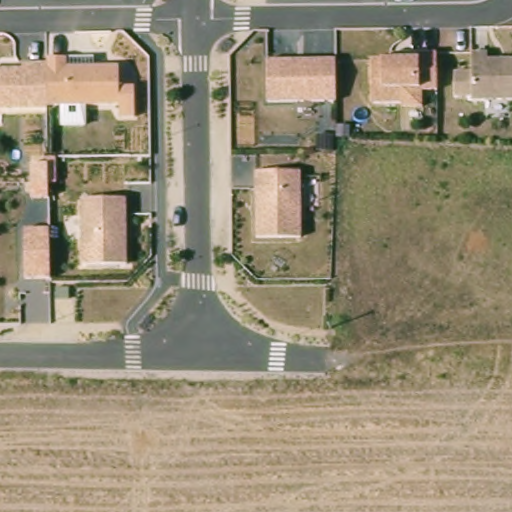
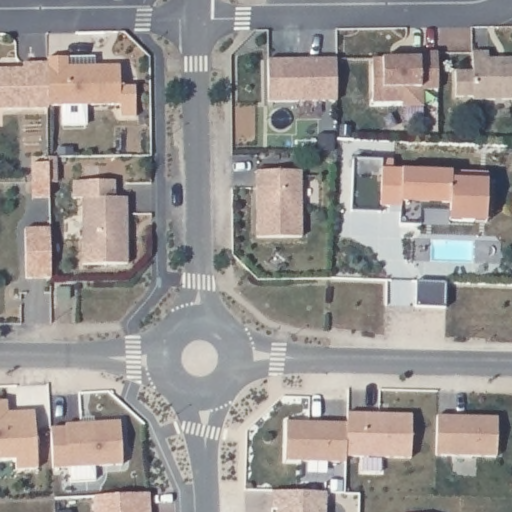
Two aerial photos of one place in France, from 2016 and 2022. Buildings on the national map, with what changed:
unchanged [(512,100),(472,101),(472,100),(471,55),(489,53),(489,62),(512,61),(512,100)]
unchanged [(419,87),(403,88),(403,104),(372,105),(370,60),(381,57),(421,56),(436,56),(438,92),(419,92),(419,87)]
unchanged [(0,107),(0,68),(22,67),(22,59),(46,58),(47,107),(0,107)]
unchanged [(119,106),(47,107),(46,58),(67,58),(67,66),(118,68),(119,106)]
unchanged [(334,59),(336,102),(267,103),(266,60),(334,59)]
new [(48,163),(48,157),(56,157),(56,182),(48,182),(48,197),(32,198),(32,163),(48,163)]
new [(420,225),(399,224),(399,207),(380,206),(380,213),(350,211),(352,158),(393,160),(392,169),(451,171),(488,173),(487,180),(485,222),(448,220),(448,212),(420,211),(420,225)]
unchanged [(300,173),(302,238),(256,239),(254,174),(300,173)]
unchanged [(125,198),(127,265),(83,265),(81,201),(125,198)]
unchanged [(51,279),(23,280),(23,228),(49,228),(51,279)]
new [(15,460),(0,461),(0,400),(7,399),(8,413),(34,411),(37,469),(16,470),(15,460)]
new [(346,423),(346,413),(412,415),(411,458),(345,456),(346,423)]
new [(436,415),(498,417),(497,456),(435,455),(436,415)]
new [(286,421),(346,423),(345,456),(345,463),(285,461),(286,421)]
new [(65,429),(65,426),(120,423),(122,465),(52,469),(50,430),(65,429)]
new [(271,511),(271,491),(326,492),(326,512),(277,512),(277,511),(271,511)]
new [(148,492),(150,512),(95,512),(94,497),(148,492)]

